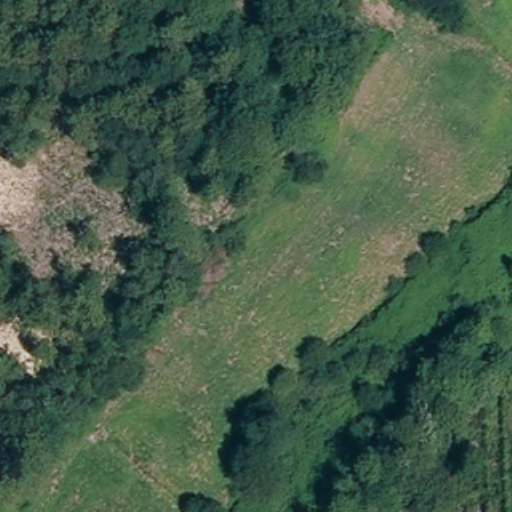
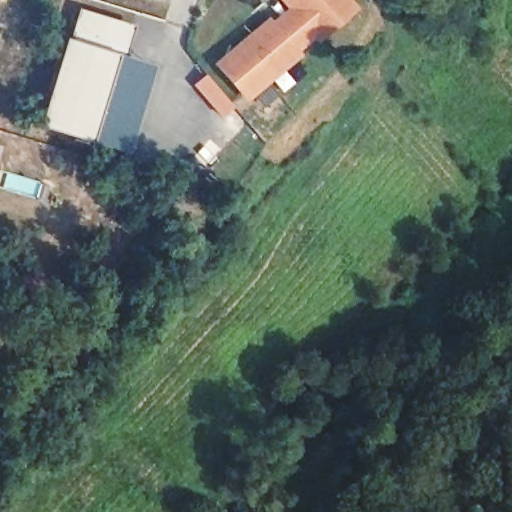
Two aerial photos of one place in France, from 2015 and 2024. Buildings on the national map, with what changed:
new [(324,34),(322,32),(300,50),(273,19),(295,0),(344,0),(352,10),(324,34)]
new [(66,35),(73,36),(82,9),(134,24),(127,46),(122,45),(120,52),(94,139),(40,122),(66,35)]
new [(265,30),(263,27),(273,19),(300,50),(248,94),(223,64),(265,30)]
new [(120,52),(151,62),(125,149),(94,139),(120,52)]
new [(0,350),(0,332),(9,340),(0,350)]

